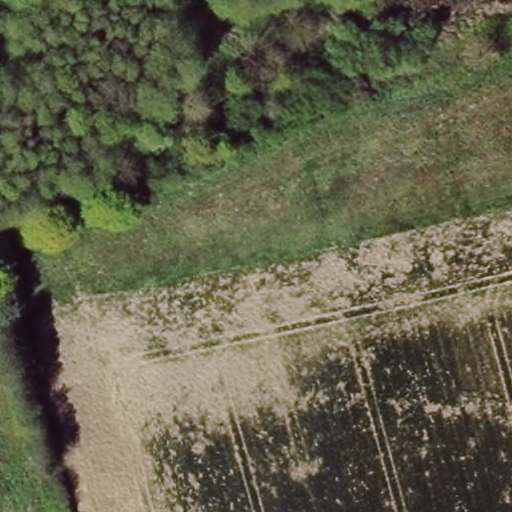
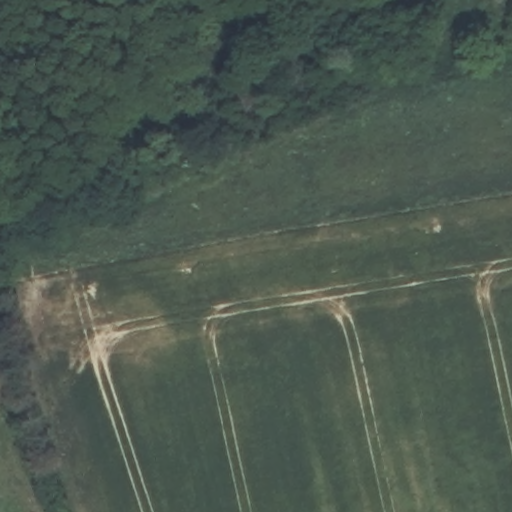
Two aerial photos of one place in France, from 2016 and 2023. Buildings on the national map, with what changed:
[]

